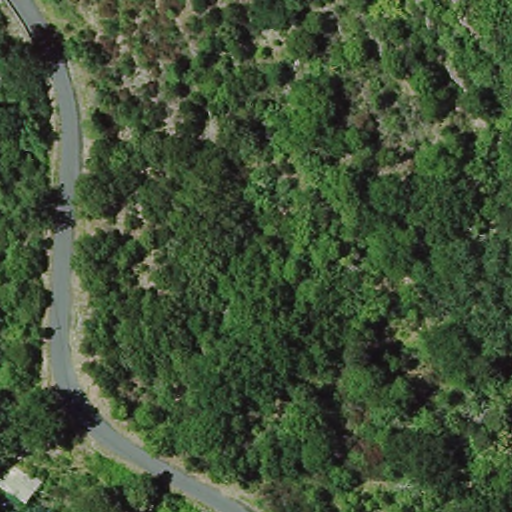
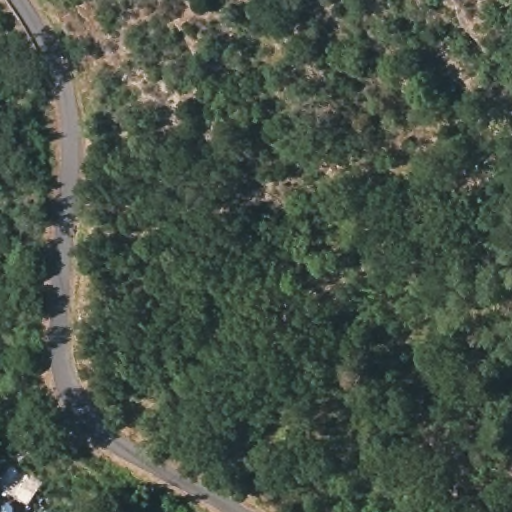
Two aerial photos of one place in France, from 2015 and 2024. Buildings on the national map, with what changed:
unchanged [(2,492),(12,471),(52,493),(37,505),(2,492)]

